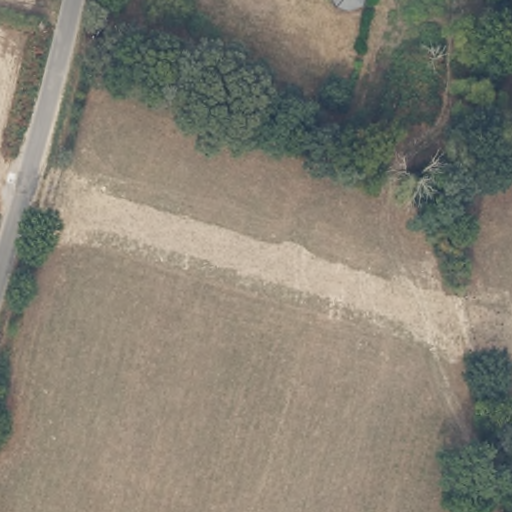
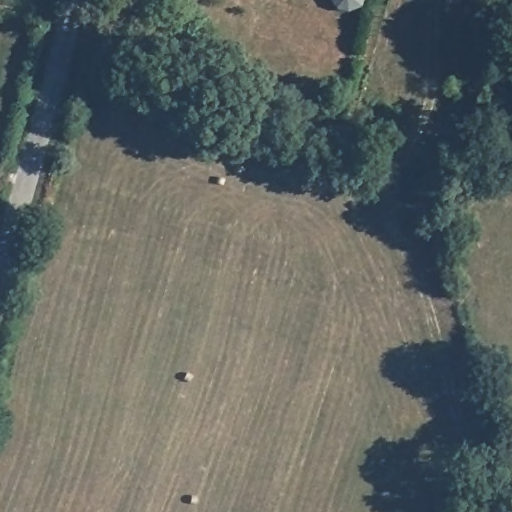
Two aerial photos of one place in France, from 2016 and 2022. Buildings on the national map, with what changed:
unchanged [(328,129),(324,139),(306,131),(311,121),(328,129)]

